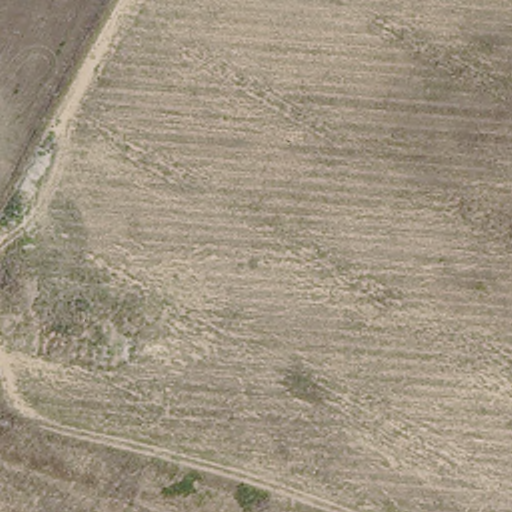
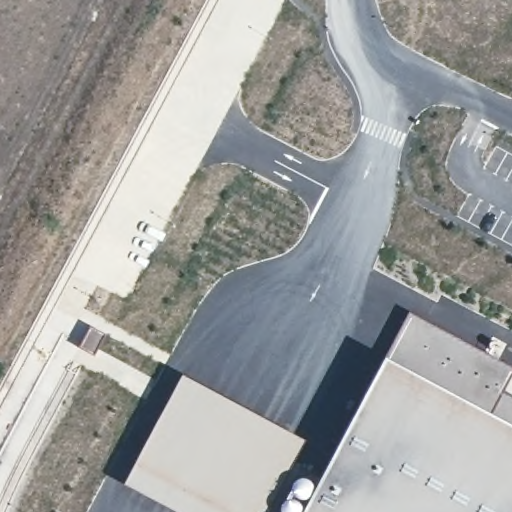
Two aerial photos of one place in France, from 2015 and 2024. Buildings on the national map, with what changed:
new [(385,358),(410,315),(512,370),(512,373),(502,392),(512,397),(512,512),(303,512),(317,486),(385,358)]
new [(182,382),(305,447),(287,488),(242,473),(205,463),(145,448),(182,382)]
new [(145,448),(205,463),(172,512),(125,491),(145,448)]
new [(242,473),(287,488),(274,512),(172,512),(205,463),(242,473)]
new [(278,512),(297,476),(317,486),(303,512),(278,512)]

